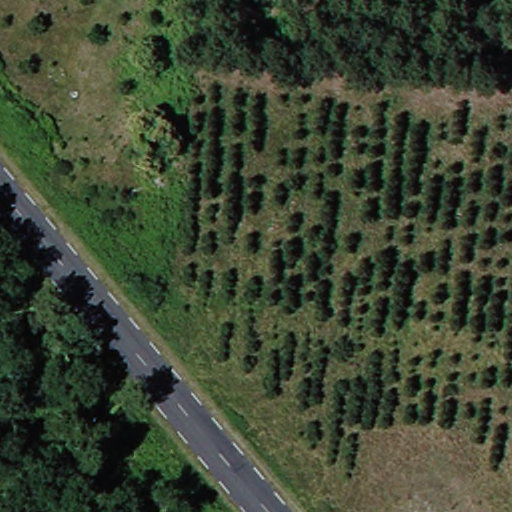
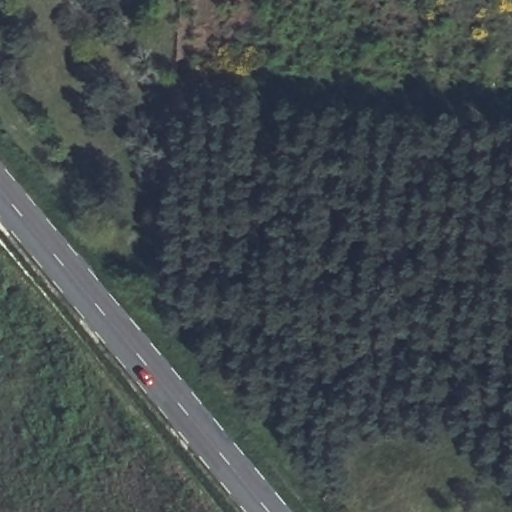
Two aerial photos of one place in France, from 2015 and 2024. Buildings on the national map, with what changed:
[]

